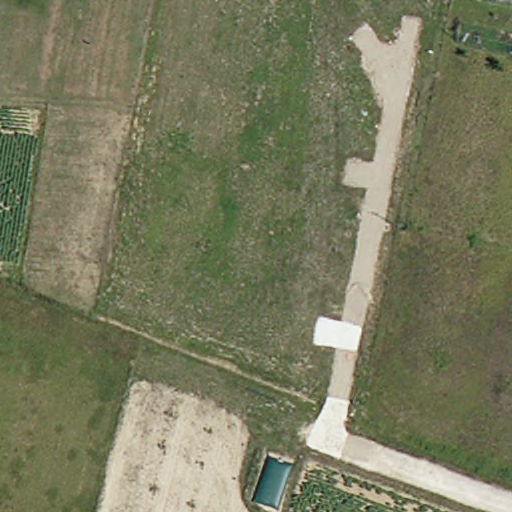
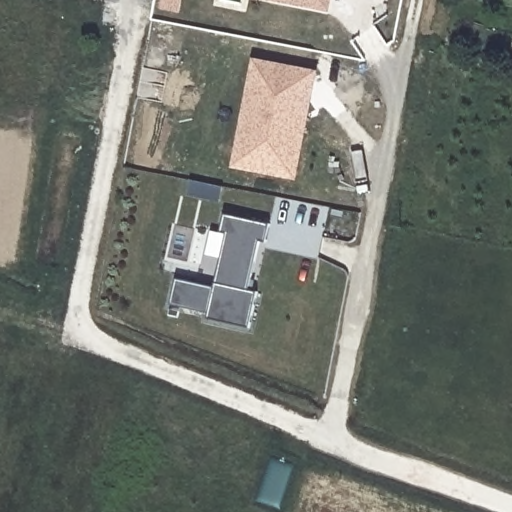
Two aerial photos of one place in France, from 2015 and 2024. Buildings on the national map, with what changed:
new [(287,2),(277,0),(287,0),(287,2)]
new [(327,10),(287,2),(287,0),(328,0),(327,10)]
new [(248,169),(233,166),(254,61),(269,64),(248,169)]
new [(314,73),(309,100),(305,116),(294,178),(248,169),(269,64),(314,73)]
new [(269,225),(266,243),(259,241),(247,291),(258,293),(249,329),(209,319),(209,315),(172,306),(176,281),(214,289),(227,234),(220,232),(224,214),(269,225)]

